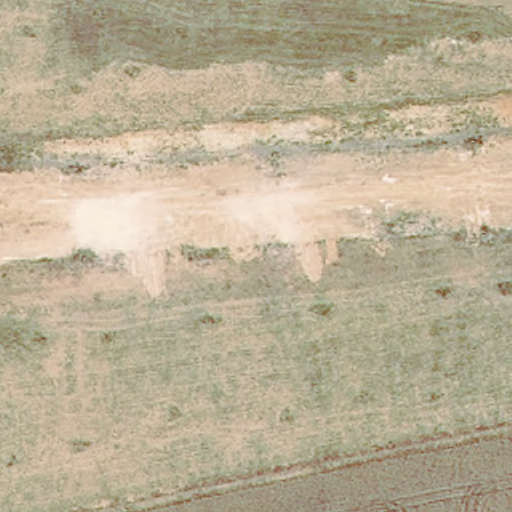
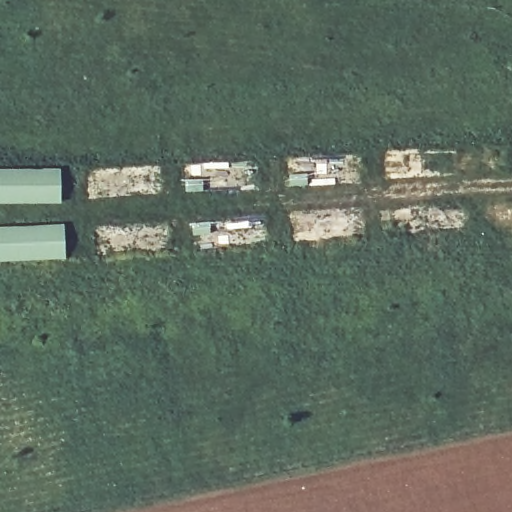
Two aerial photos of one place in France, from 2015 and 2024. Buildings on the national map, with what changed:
new [(60,203),(0,203),(0,168),(60,168),(60,203)]
new [(65,258),(0,261),(0,226),(63,224),(65,258)]

